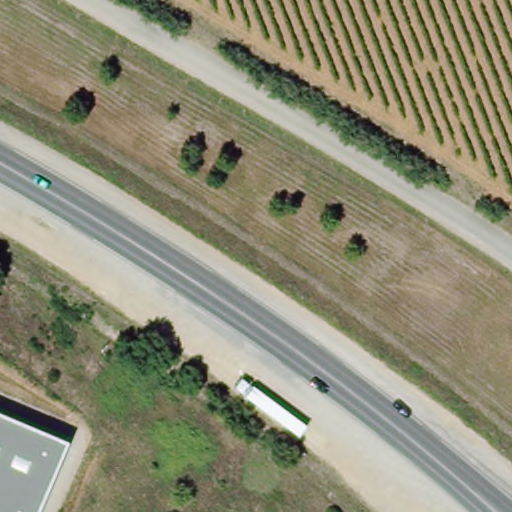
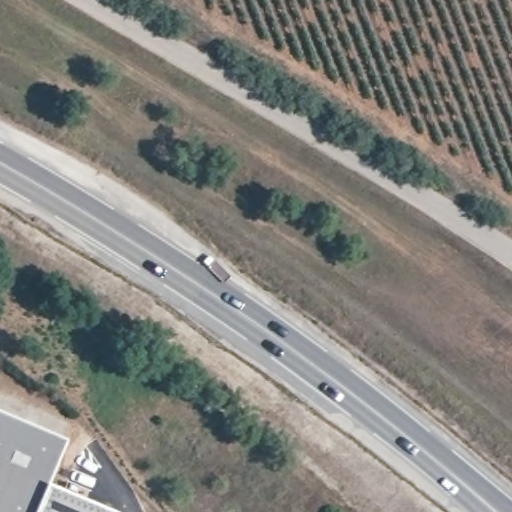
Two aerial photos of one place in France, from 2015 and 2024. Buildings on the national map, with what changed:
unchanged [(0,512),(0,413),(66,440),(37,512),(0,512)]
new [(111,512),(36,512),(47,485),(111,512)]

